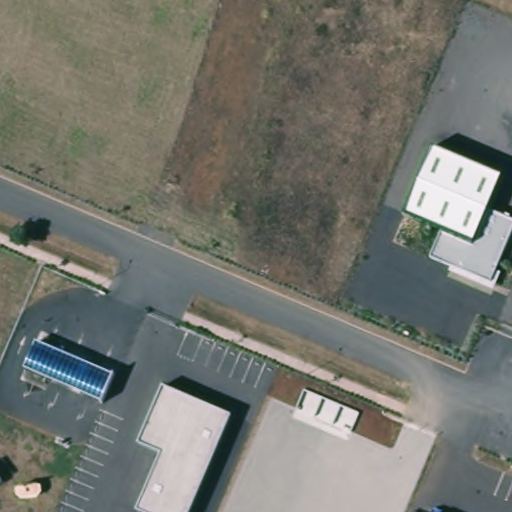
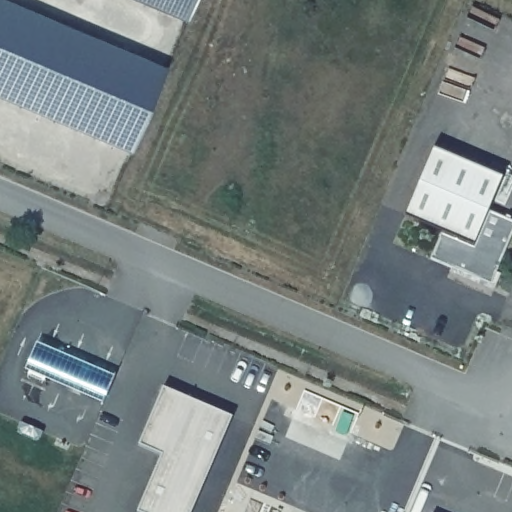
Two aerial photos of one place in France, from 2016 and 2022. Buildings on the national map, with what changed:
new [(10,0),(166,66),(130,151),(0,96),(0,0),(10,0)]
new [(138,0),(195,0),(186,20),(138,0)]
unchanged [(406,214),(432,148),(501,175),(488,208),(512,219),(512,233),(492,282),(430,257),(440,231),(406,214)]
unchanged [(25,367),(36,340),(115,375),(103,402),(25,367)]
unchanged [(163,386),(232,415),(190,512),(139,512),(137,511),(162,455),(139,444),(163,386)]

